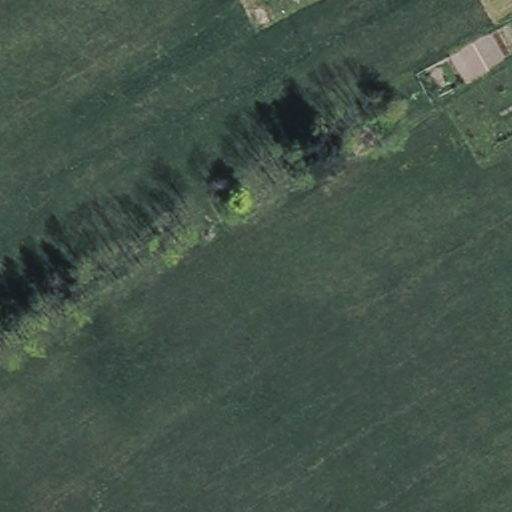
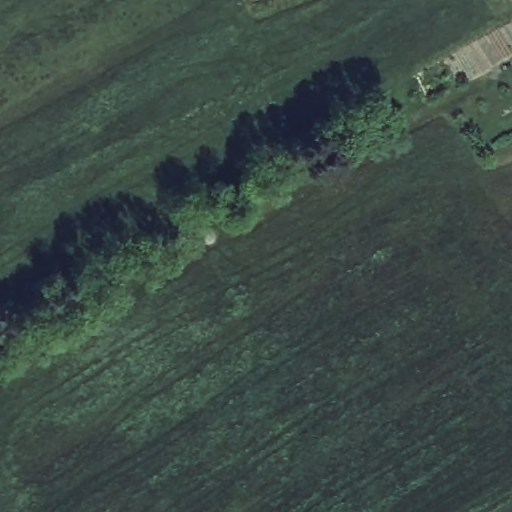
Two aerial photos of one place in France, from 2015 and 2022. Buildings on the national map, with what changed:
[]

